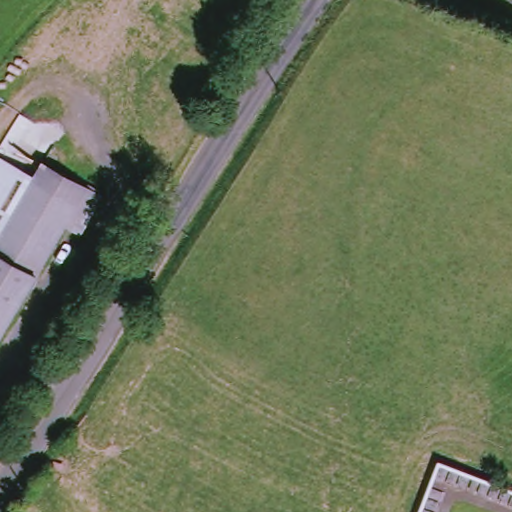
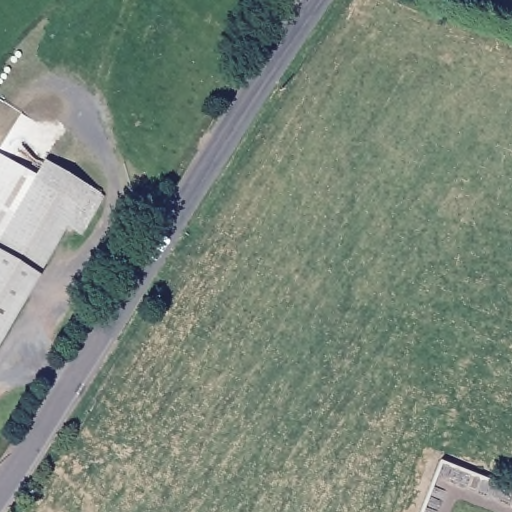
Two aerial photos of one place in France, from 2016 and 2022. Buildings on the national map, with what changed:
unchanged [(109,204),(86,240),(71,231),(0,341),(0,156),(42,182),(52,168),(109,204)]

